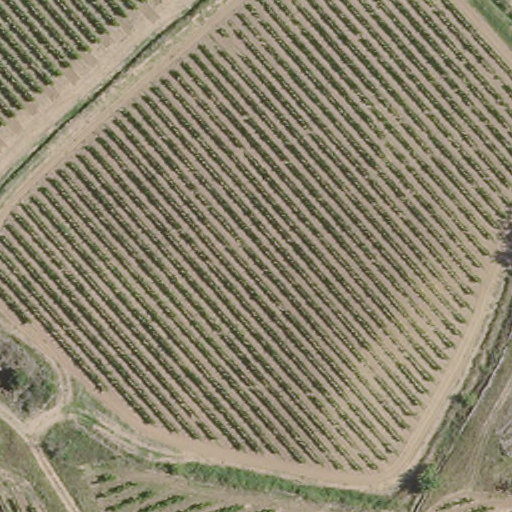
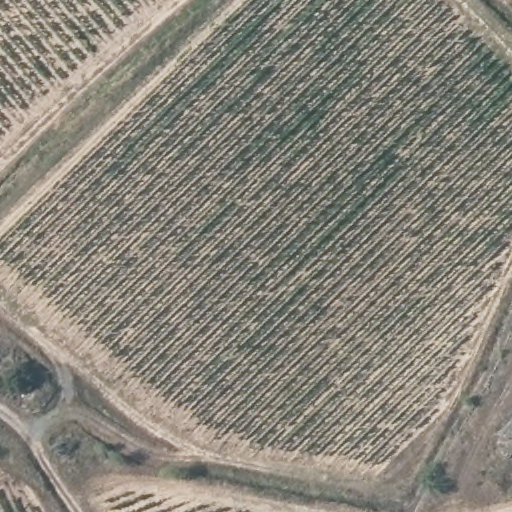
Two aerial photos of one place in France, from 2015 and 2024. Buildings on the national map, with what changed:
[]

